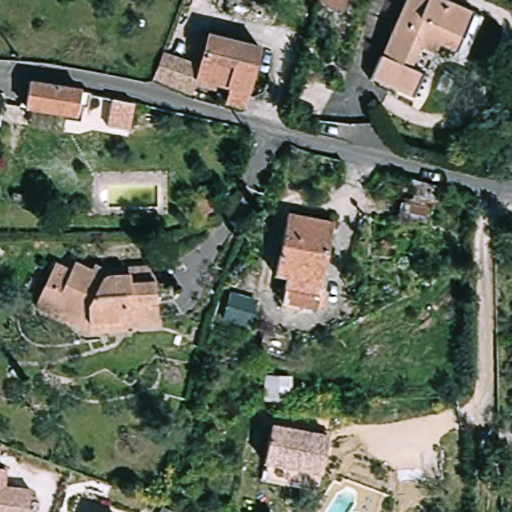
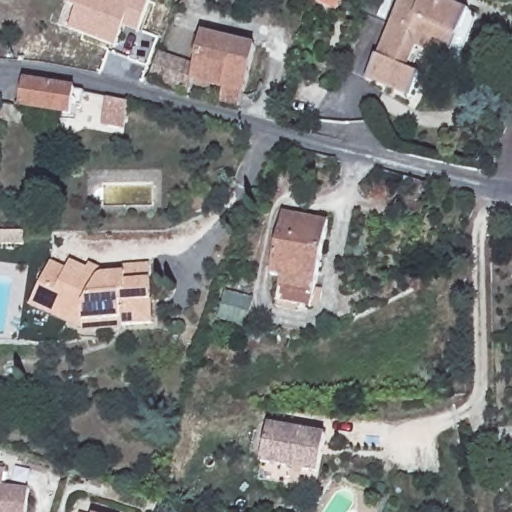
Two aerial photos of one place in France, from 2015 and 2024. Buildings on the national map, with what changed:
new [(128,0),(134,2),(134,0),(148,0),(152,1),(140,33),(132,30),(134,25),(127,22),(118,45),(70,27),(77,9),(69,3),(70,0),(128,0)]
unchanged [(313,0),(343,0),(338,11),(313,0)]
unchanged [(432,101),(365,75),(375,50),(380,52),(400,0),(455,0),(472,6),(480,10),(464,54),(455,50),(451,58),(432,50),(421,73),(440,80),(432,101)]
unchanged [(219,101),(223,87),(195,80),(190,96),(171,86),(150,79),(159,51),(199,63),(208,35),(258,49),(245,94),(241,107),(219,101)]
unchanged [(74,113),(24,107),(27,80),(78,86),(74,113)]
new [(110,95),(131,100),(127,124),(106,120),(110,95)]
unchanged [(399,193),(408,195),(412,180),(427,185),(425,199),(424,204),(421,217),(395,212),(399,193)]
unchanged [(190,214),(186,204),(202,197),(207,207),(190,214)]
unchanged [(317,302),(284,295),(286,285),(274,282),(287,219),(333,229),(317,302)]
unchanged [(70,328),(25,299),(31,291),(53,257),(67,267),(70,263),(85,272),(98,281),(114,281),(115,274),(144,276),(143,292),(140,331),(109,329),(108,331),(70,328)]
unchanged [(230,316),(217,306),(231,288),(255,308),(241,326),(230,316)]
unchanged [(293,393),(284,405),(258,385),(268,373),(293,393)]
unchanged [(319,474),(262,462),(269,425),(327,436),(319,474)]
unchanged [(13,463),(12,480),(38,483),(35,512),(0,512),(0,462),(13,463)]

